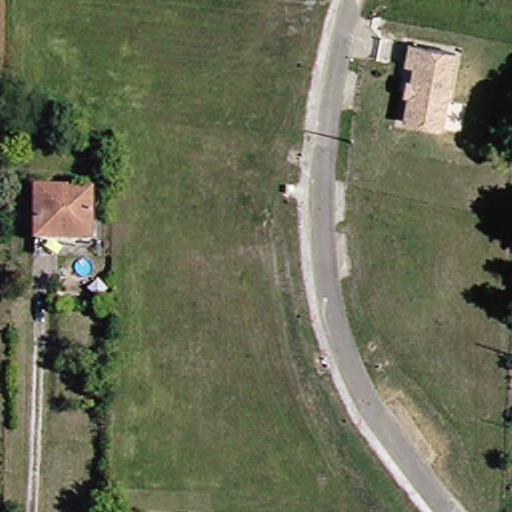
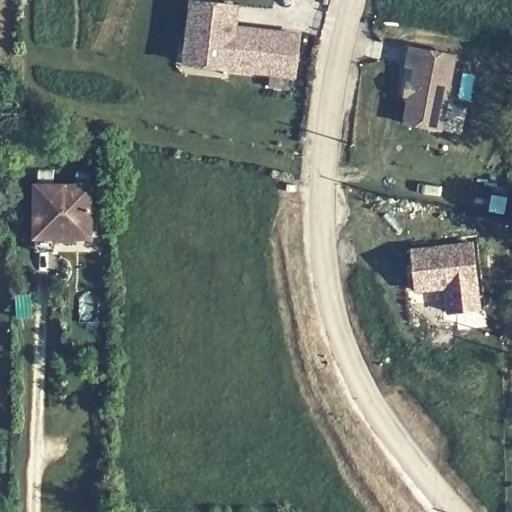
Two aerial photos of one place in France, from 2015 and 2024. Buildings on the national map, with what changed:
new [(237,26),(301,34),(295,80),(181,67),(188,0),(193,0),(240,6),(237,26)]
unchanged [(410,69),(403,67),(406,48),(458,54),(445,130),(404,125),(410,69)]
unchanged [(83,178),(83,244),(51,244),(51,261),(30,260),(31,177),(83,178)]
new [(443,291),(415,295),(410,250),(473,242),(481,311),(446,316),(443,291)]

